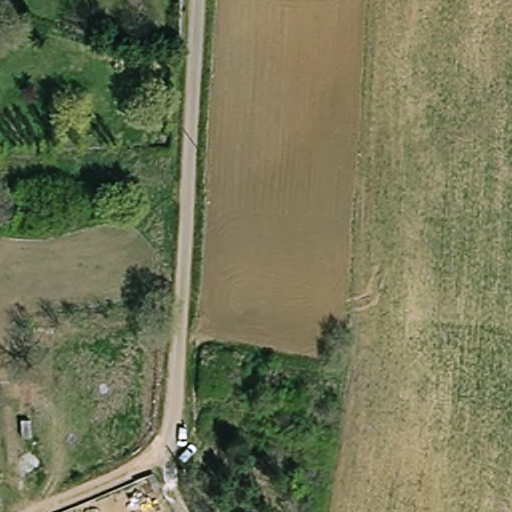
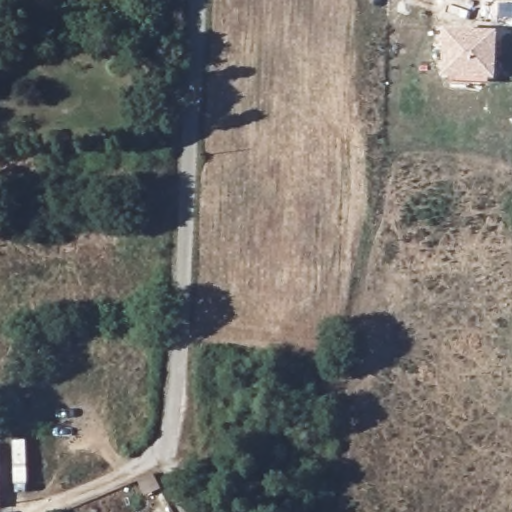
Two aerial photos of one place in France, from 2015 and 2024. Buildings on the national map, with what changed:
new [(503,0),(512,1),(512,21),(480,18),(480,0),(503,0)]
new [(443,29),(493,33),(489,78),(439,74),(443,29)]

